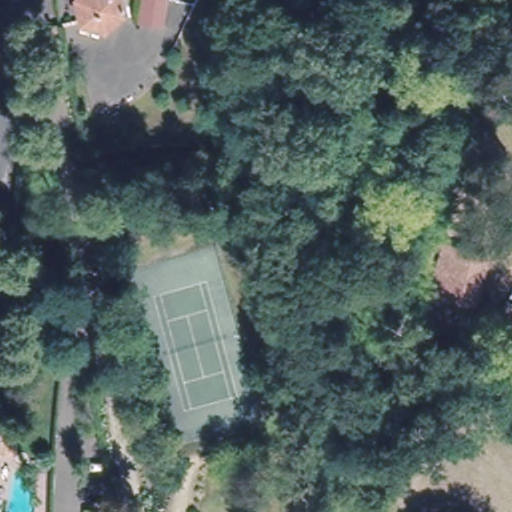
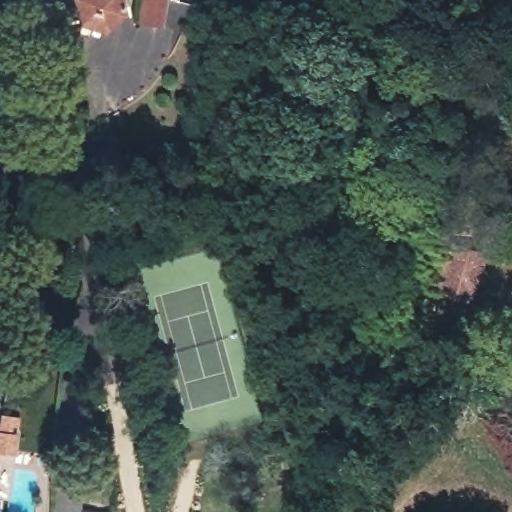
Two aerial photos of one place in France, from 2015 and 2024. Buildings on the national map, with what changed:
unchanged [(105,29),(82,19),(81,0),(123,0),(124,14),(105,29)]
unchanged [(131,0),(140,0),(140,1),(131,0)]
unchanged [(141,26),(144,0),(168,0),(164,29),(141,26)]
unchanged [(480,259),(486,260),(480,282),(474,280),(470,294),(454,290),(448,288),(460,242),(466,244),(483,248),(480,259)]
unchanged [(18,426),(13,425),(12,435),(17,435),(15,452),(1,450),(5,417),(19,419),(18,426)]

